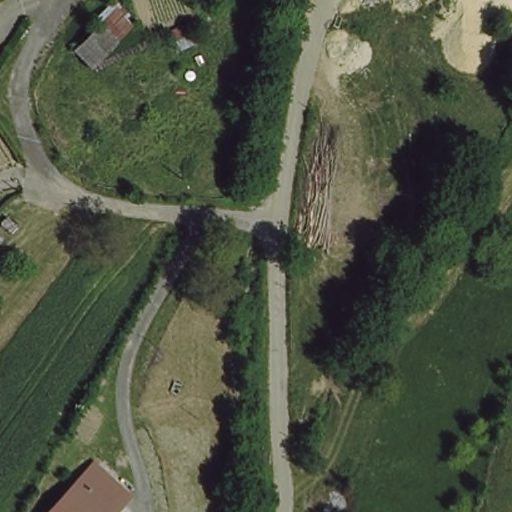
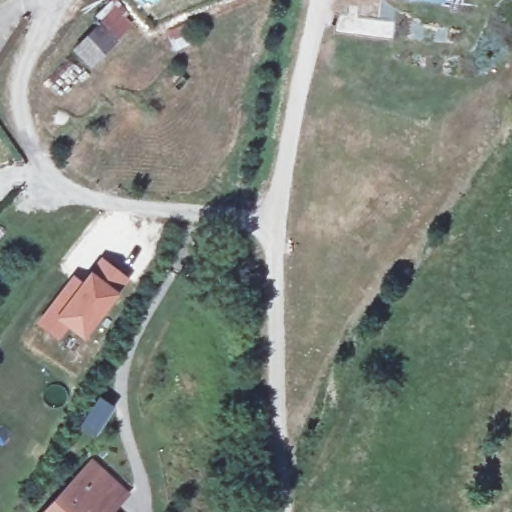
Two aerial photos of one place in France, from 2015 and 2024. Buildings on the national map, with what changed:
unchanged [(134,17),(119,31),(88,67),(72,50),(96,25),(89,17),(109,0),(118,0),(134,17)]
new [(73,273),(81,279),(101,255),(130,278),(82,339),(68,328),(58,341),(35,322),(73,273)]
new [(96,394),(115,406),(94,438),(75,427),(96,394)]
unchanged [(122,494),(105,512),(49,512),(94,467),(122,494)]

